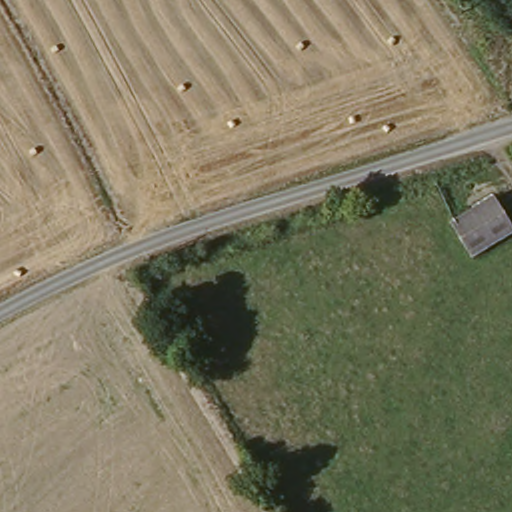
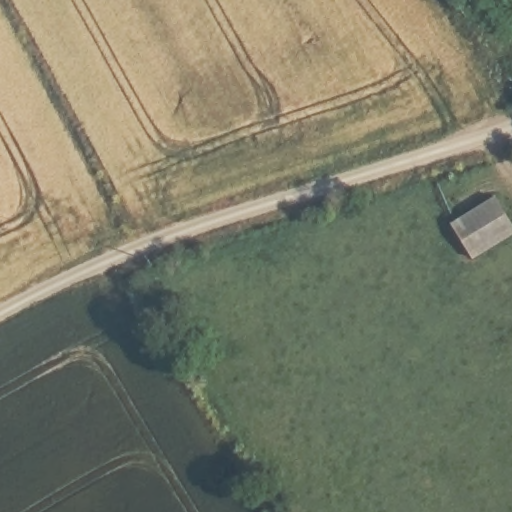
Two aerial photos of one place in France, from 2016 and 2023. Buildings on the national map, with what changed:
unchanged [(512,234),(470,262),(446,225),(488,197),(512,230),(512,234)]

